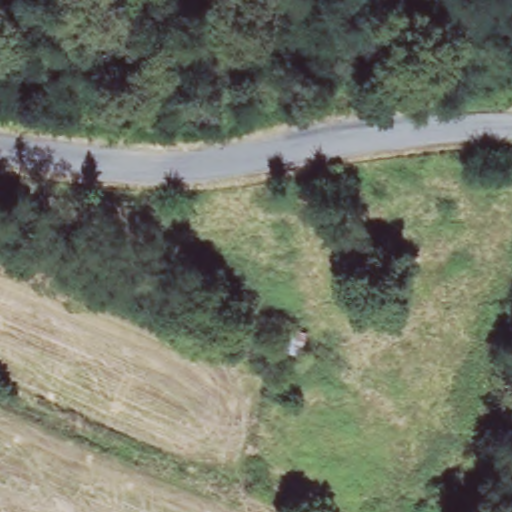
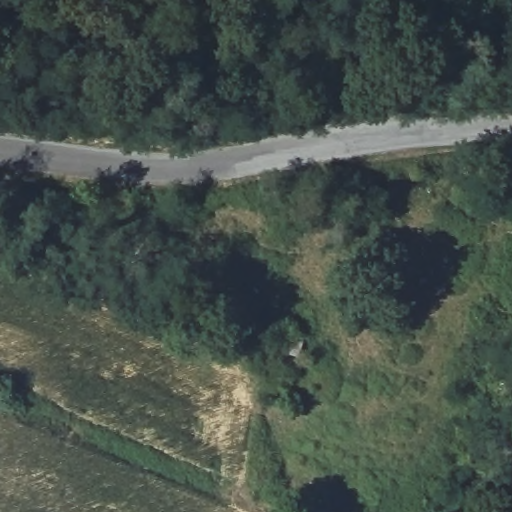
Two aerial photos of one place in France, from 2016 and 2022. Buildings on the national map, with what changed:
unchanged [(274,351),(282,325),(312,331),(303,358),(274,351)]

